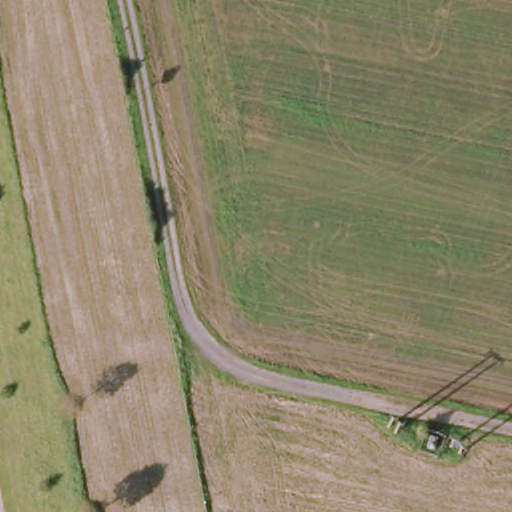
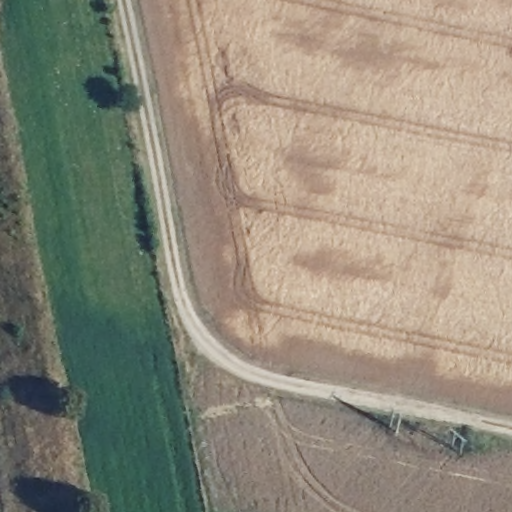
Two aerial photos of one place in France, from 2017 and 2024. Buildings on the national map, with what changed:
unchanged [(430,433),(448,439),(440,461),(421,454),(430,433)]

